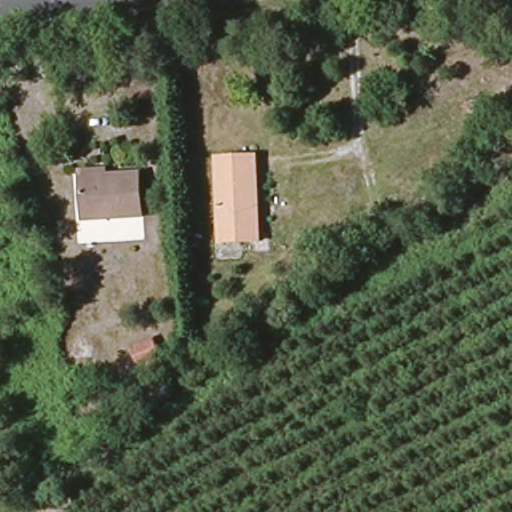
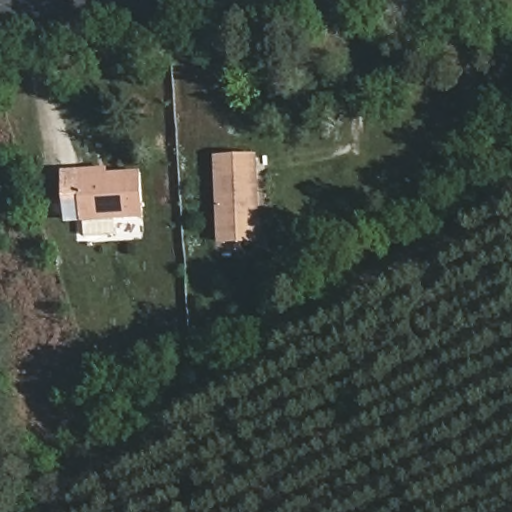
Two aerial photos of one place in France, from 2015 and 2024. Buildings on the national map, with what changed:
unchanged [(254,246),(214,248),(212,164),(251,162),(254,246)]
unchanged [(140,219),(80,221),(77,172),(102,170),(104,177),(137,175),(140,219)]
unchanged [(161,362),(140,375),(129,359),(125,352),(147,339),(151,344),(161,362)]

